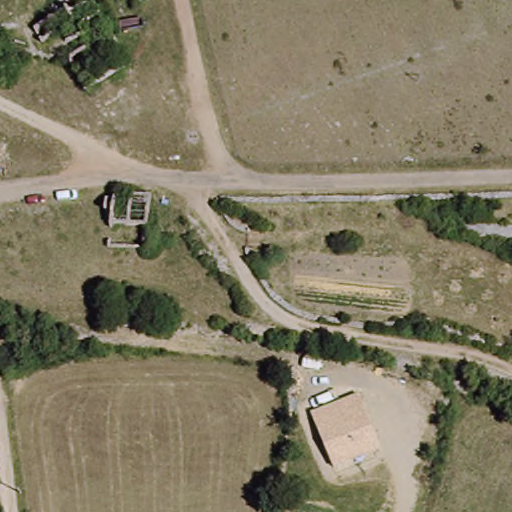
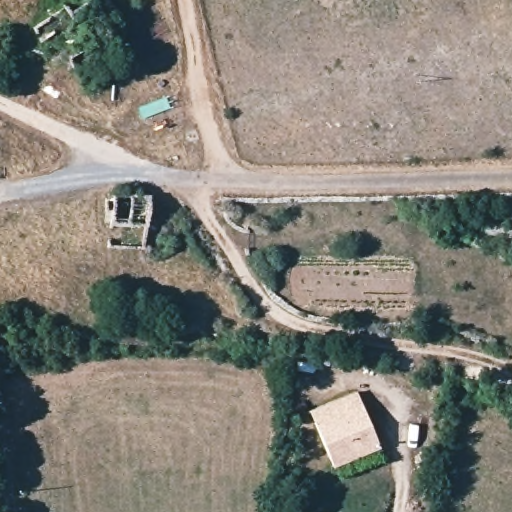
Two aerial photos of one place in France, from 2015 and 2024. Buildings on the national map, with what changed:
unchanged [(311,410),(359,391),(383,447),(335,467),(311,410)]

